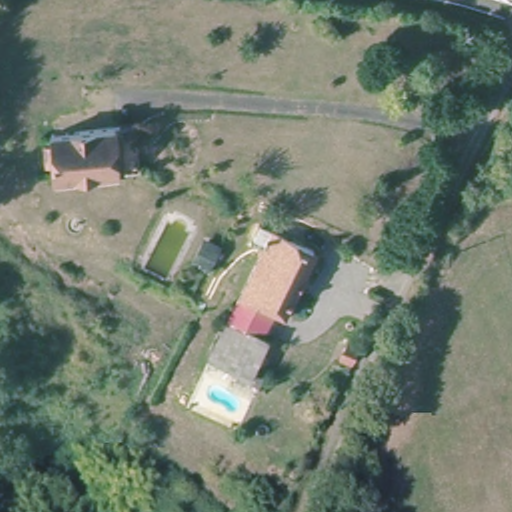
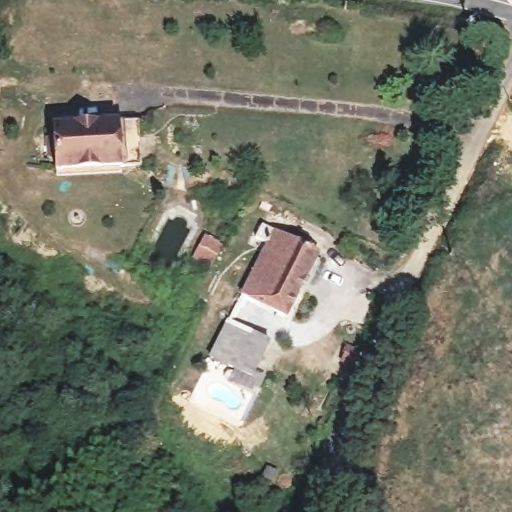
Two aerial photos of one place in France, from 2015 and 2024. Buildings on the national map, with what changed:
unchanged [(137,162),(53,166),(51,119),(137,115),(137,162)]
unchanged [(271,341),(253,370),(247,379),(209,356),(267,241),(257,235),(265,220),(320,251),(286,317),(277,310),(262,336),(271,341)]
unchanged [(355,369),(341,359),(347,344),(363,352),(355,369)]

